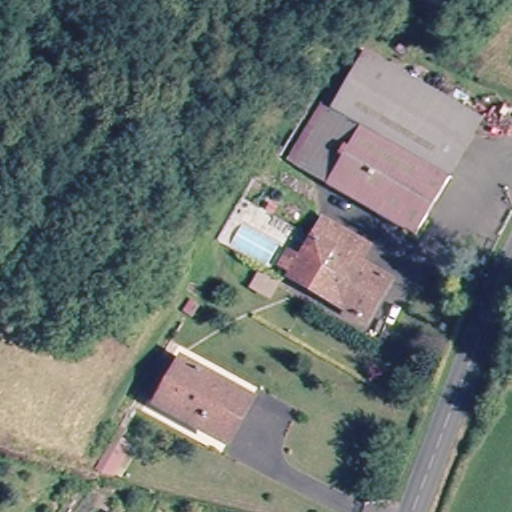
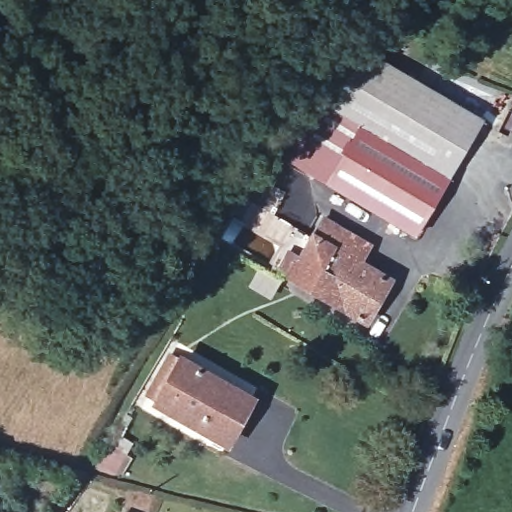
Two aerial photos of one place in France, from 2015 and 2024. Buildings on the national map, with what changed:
unchanged [(327,107),(360,51),(478,113),(446,170),(327,107)]
unchanged [(446,170),(413,226),(294,165),(327,107),(446,170)]
unchanged [(285,278),(292,267),(275,256),(292,230),(308,242),(321,224),(365,250),(357,263),(388,282),(364,324),(285,278)]
unchanged [(220,444),(157,405),(149,400),(175,358),(184,363),(248,403),(220,444)]

